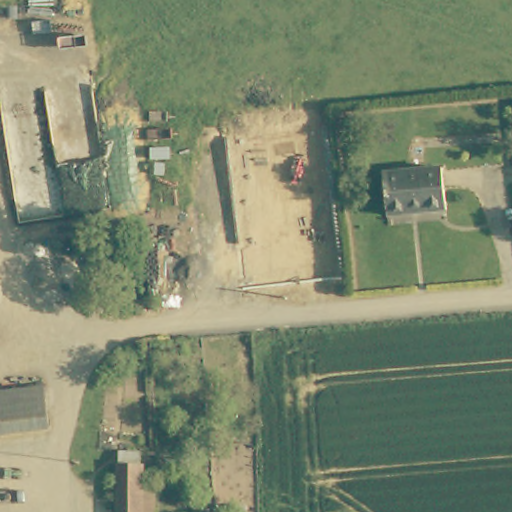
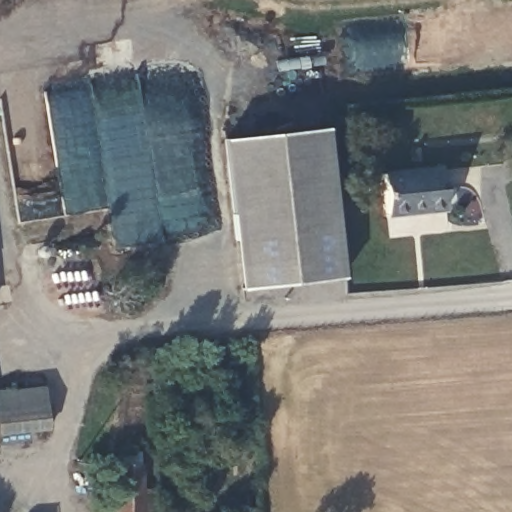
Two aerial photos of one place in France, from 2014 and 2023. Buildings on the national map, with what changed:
new [(328,129),(343,278),(242,289),(225,139),(328,129)]
unchanged [(385,213),(381,170),(438,163),(443,205),(444,215),(386,221),(385,213)]
demolished [(266,171),(290,168),(306,282),(280,285),(266,171)]
unchanged [(0,393),(48,386),(50,404),(53,428),(1,436),(0,432),(0,393)]
unchanged [(116,456),(141,457),(141,512),(115,512),(116,456)]

